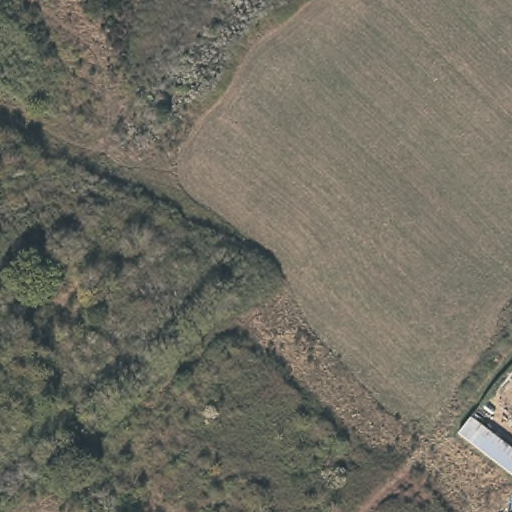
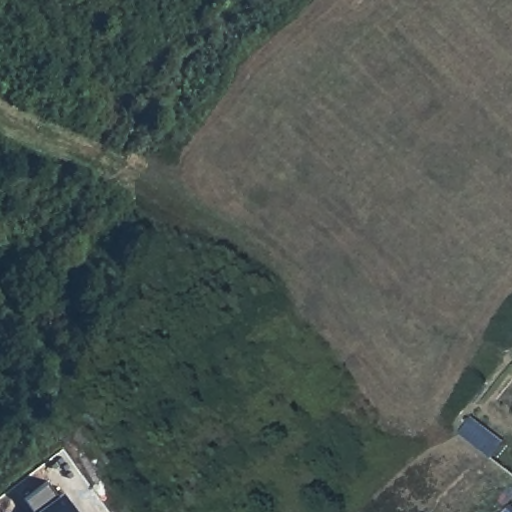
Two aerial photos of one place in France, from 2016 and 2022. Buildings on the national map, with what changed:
unchanged [(512,447),(512,474),(459,434),(473,416),(512,447)]
new [(36,511),(25,496),(48,480),(59,496),(65,492),(79,512),(35,512),(36,511)]

